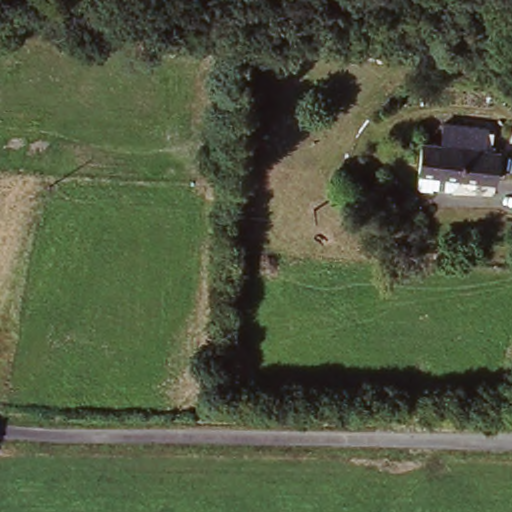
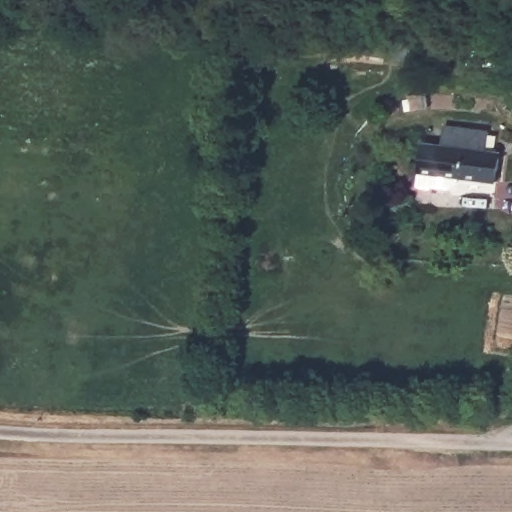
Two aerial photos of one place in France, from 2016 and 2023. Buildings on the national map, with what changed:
unchanged [(502,152),(501,181),(463,177),(463,182),(460,185),(457,187),(453,189),(422,185),(425,142),(502,152)]

